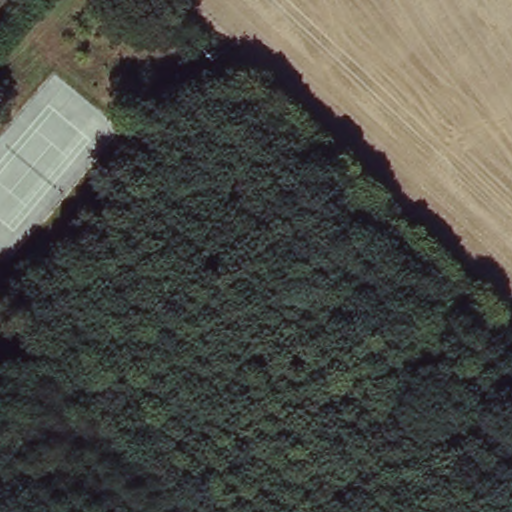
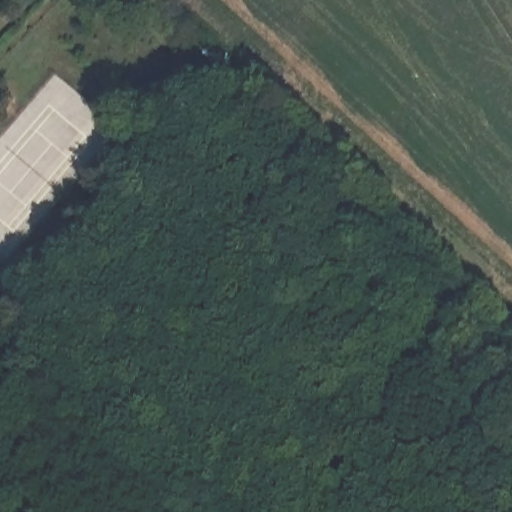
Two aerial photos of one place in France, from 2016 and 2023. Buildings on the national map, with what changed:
unchanged [(7,401),(0,395),(0,384),(12,367),(27,378),(7,401)]
unchanged [(0,413),(0,409),(2,411),(0,413)]

